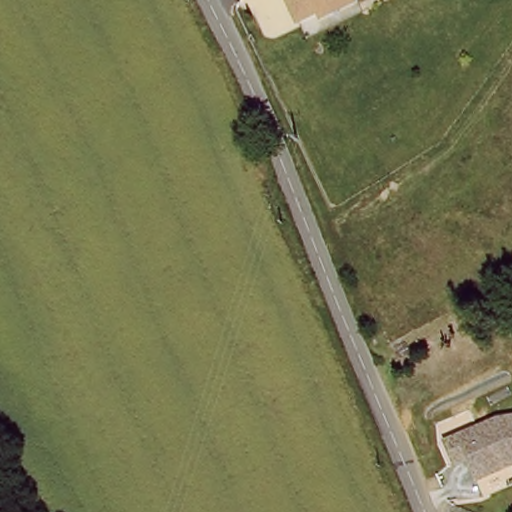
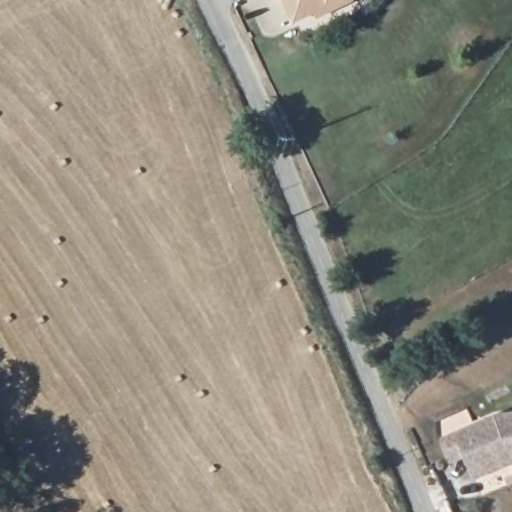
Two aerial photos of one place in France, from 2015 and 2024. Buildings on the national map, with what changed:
unchanged [(317,10),(297,20),(290,5),(287,0),(351,0),(319,15),(317,10)]
unchanged [(496,420),(512,417),(512,464),(476,480),(466,457),(452,463),(443,443),(496,420)]

